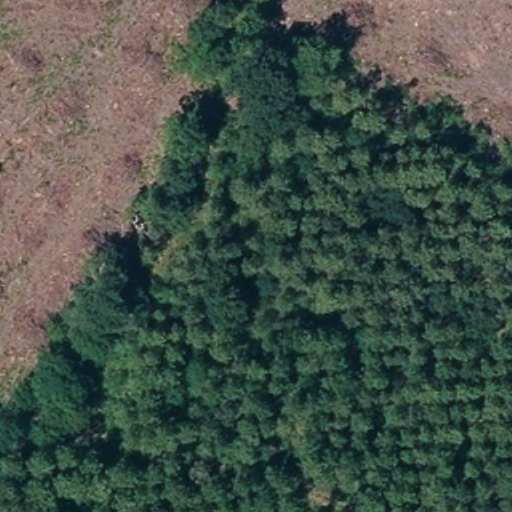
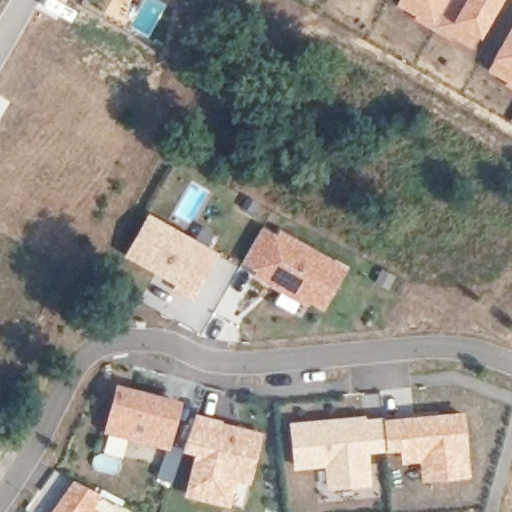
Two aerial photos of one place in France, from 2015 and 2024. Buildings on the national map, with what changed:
new [(119,0),(130,0),(128,5),(119,0)]
new [(463,0),(502,0),(473,51),(431,30),(394,5),(396,0),(448,0),(441,13),(452,20),(463,0)]
new [(512,89),(485,72),(512,24),(512,89)]
new [(221,254),(193,302),(172,291),(176,284),(126,257),(150,213),(221,254)]
new [(278,234),(281,230),(349,267),(324,311),(310,302),(306,307),(253,277),(258,271),(242,263),(263,227),(278,234)]
new [(184,401),(174,446),(184,448),(173,482),(158,478),(167,450),(105,434),(117,383),(184,401)]
new [(465,410),(472,476),(422,481),(420,461),(402,463),(400,451),(388,451),(385,417),(465,410)]
new [(225,420),(224,423),(264,433),(252,485),(238,481),(232,510),(185,496),(195,455),(186,451),(196,414),(225,420)]
new [(367,415),(367,418),(385,417),(388,451),(370,453),(372,485),(328,490),(326,466),(295,470),(290,422),(367,415)]
new [(103,496),(94,510),(98,512),(51,512),(74,480),(103,496)]

